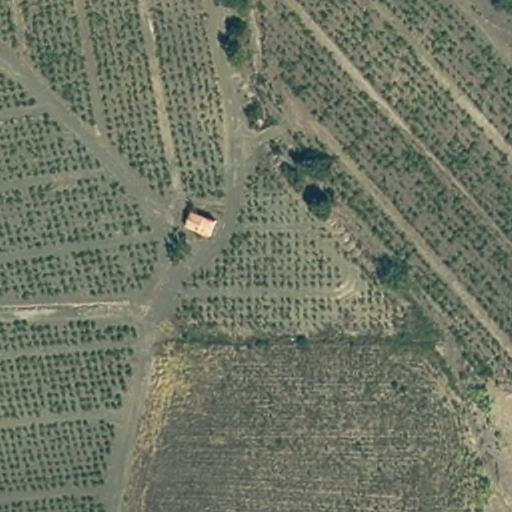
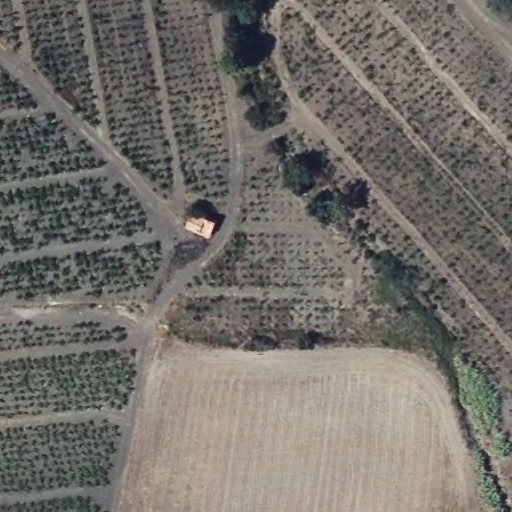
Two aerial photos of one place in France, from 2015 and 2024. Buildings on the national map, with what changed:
unchanged [(218,215),(212,229),(185,222),(190,206),(218,215)]

